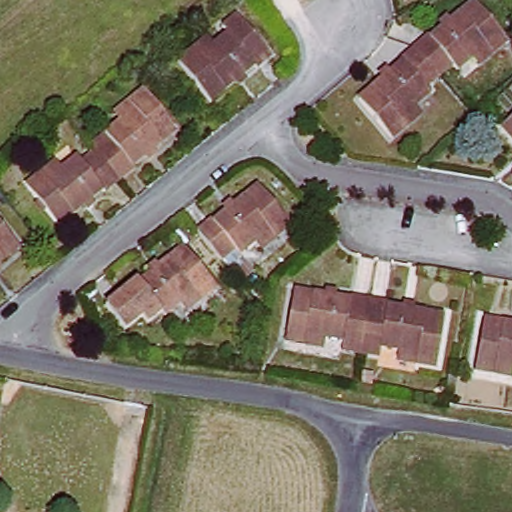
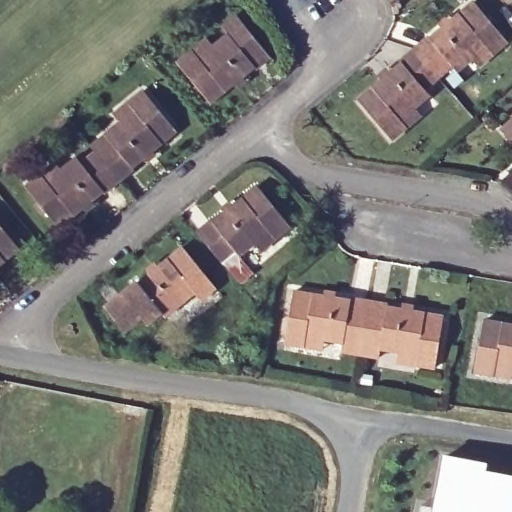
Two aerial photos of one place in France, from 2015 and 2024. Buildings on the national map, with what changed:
unchanged [(469,58),(452,71),(448,66),(437,75),(415,48),(429,36),(430,38),(475,3),(502,38),(506,42),(475,66),(469,58)]
unchanged [(227,34),(242,20),(277,63),(262,75),(260,73),(213,110),(183,73),(201,59),(182,73),(181,70),(215,44),(218,50),(232,41),(227,34)]
unchanged [(387,138),(383,133),(357,99),(400,64),(398,62),(415,48),(437,75),(422,88),(425,93),(410,106),(417,114),(387,138)]
unchanged [(111,141),(125,127),(119,120),(149,96),(152,99),(180,134),(137,168),(140,172),(124,185),(100,155),(114,144),(111,141)]
unchanged [(505,126),(512,120),(512,134),(505,126)]
unchanged [(87,167),(100,155),(124,185),(108,197),(105,194),(62,230),(33,196),(30,192),(61,166),(68,174),(82,162),(87,167)]
unchanged [(262,252),(257,246),(242,256),(237,250),(223,262),(200,235),(215,223),(216,225),(260,190),(290,225),(292,228),(262,252)]
unchanged [(0,228),(22,256),(0,274),(0,228)]
unchanged [(182,308),(167,318),(163,313),(147,325),(142,318),(122,334),(106,313),(141,285),(142,287),(187,251),(215,286),(218,290),(187,315),(182,308)]
unchanged [(285,345),(287,340),(295,295),(352,306),(353,302),(371,305),(363,359),(343,356),(345,347),(328,344),(326,352),(285,345)]
unchanged [(398,358),(382,354),(380,362),(363,359),(371,305),(390,308),(390,312),(445,324),(437,369),(436,373),(397,366),(398,358)]
unchanged [(477,373),(477,368),(485,323),(512,327),(512,379),(477,373)]
new [(487,472),(512,476),(512,512),(432,512),(442,456),(488,464),(487,472)]

